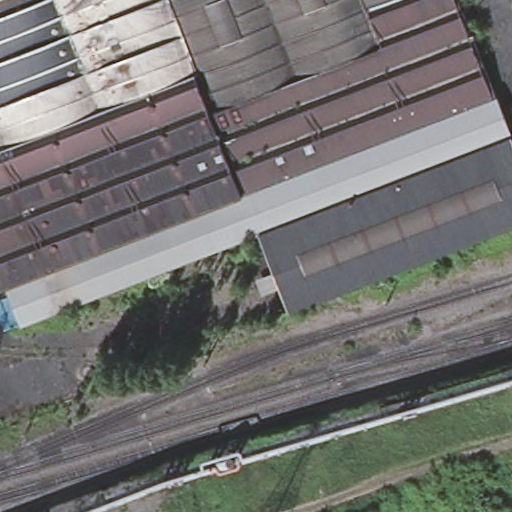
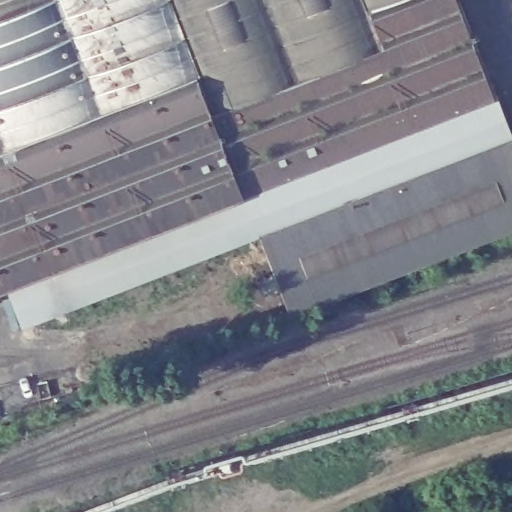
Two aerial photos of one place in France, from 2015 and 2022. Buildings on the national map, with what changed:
unchanged [(465,5),(500,92),(68,262),(70,269),(12,291),(0,296),(0,0),(464,0),(465,5)]
unchanged [(465,5),(464,0),(479,0),(465,5)]
unchanged [(512,123),(512,131),(262,229),(25,322),(12,291),(70,269),(68,262),(500,92),(512,123)]
unchanged [(512,131),(512,222),(293,307),(262,229),(512,131)]

